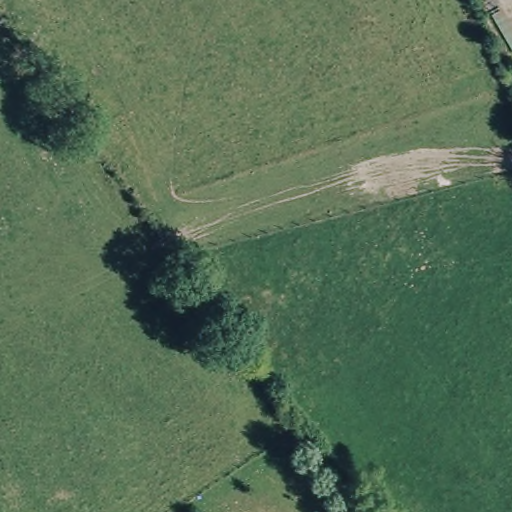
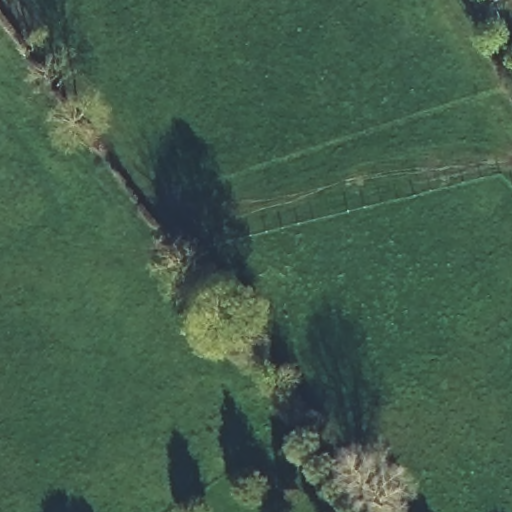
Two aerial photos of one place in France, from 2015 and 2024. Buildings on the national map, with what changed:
[]

